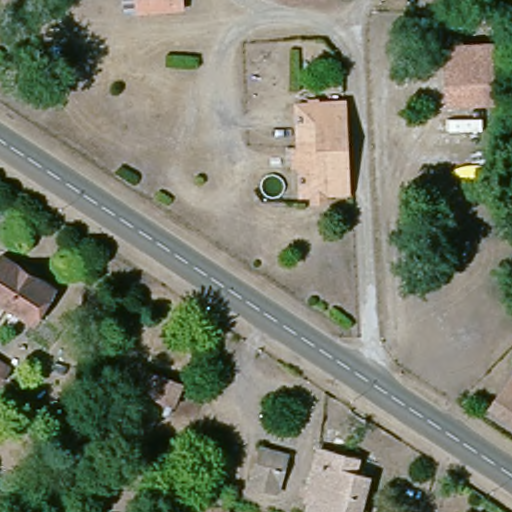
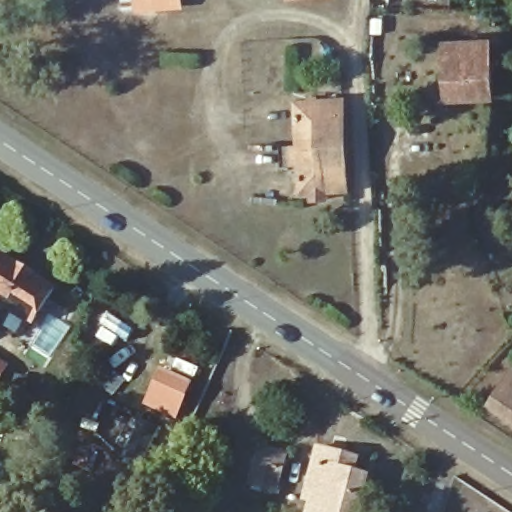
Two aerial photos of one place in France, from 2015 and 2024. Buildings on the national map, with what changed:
unchanged [(148,0),(188,0),(189,18),(150,19),(148,0)]
unchanged [(295,0),(312,0),(295,1),(295,0)]
unchanged [(452,83),(451,61),(450,46),(497,45),(497,60),(499,101),(464,102),(453,103),(452,83)]
unchanged [(314,200),(314,190),(304,191),(303,163),(295,163),(295,148),(303,148),(301,105),(347,103),(351,190),(328,190),(327,200),(314,200)]
unchanged [(10,308),(1,322),(0,321),(0,267),(6,257),(59,294),(38,327),(10,308)]
unchanged [(4,390),(0,387),(0,363),(14,374),(4,390)]
demolished [(174,410),(158,403),(159,397),(140,388),(146,369),(183,384),(174,410)]
new [(148,408),(164,374),(168,376),(170,371),(194,382),(176,421),(148,408)]
unchanged [(510,418),(503,413),(512,399),(512,419),(510,418)]
unchanged [(275,490),(255,484),(263,449),(284,455),(275,490)]
unchanged [(312,498),(308,497),(317,458),(357,467),(355,479),(369,483),(362,512),(309,512),(312,498)]
unchanged [(234,512),(208,512),(209,499),(235,502),(234,512)]

